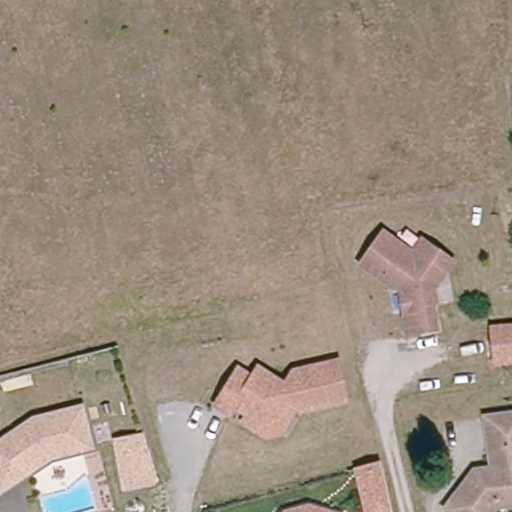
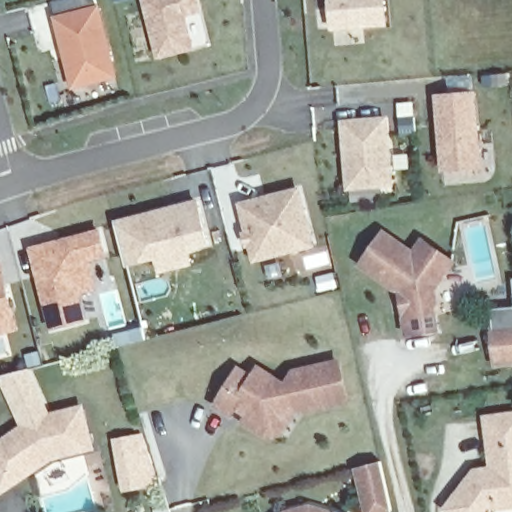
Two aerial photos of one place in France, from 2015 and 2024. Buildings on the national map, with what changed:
new [(201,10),(186,15),(194,48),(157,59),(143,0),(199,0),(201,10)]
new [(328,0),(385,0),(387,24),(331,29),(328,0)]
new [(72,87),(53,17),(98,5),(116,75),(72,87)]
new [(482,169),(441,172),(435,95),(476,90),(482,169)]
new [(393,185),(347,189),(342,119),(388,115),(393,185)]
new [(238,201),(299,186),(315,245),(254,261),(238,201)]
new [(207,245),(189,249),(193,263),(159,272),(155,258),(128,265),(116,221),(197,199),(207,245)]
new [(52,329),(29,246),(100,228),(106,253),(89,259),(97,285),(79,291),(86,320),(52,329)]
unchanged [(408,250),(417,236),(447,257),(427,285),(429,298),(427,302),(431,324),(402,329),(398,308),(400,305),(398,290),(355,260),(378,229),(408,250)]
new [(18,329),(0,334),(0,259),(0,258),(18,329)]
unchanged [(492,332),(512,330),(512,363),(495,365),(492,332)]
unchanged [(266,432),(243,417),(248,410),(235,401),(230,410),(215,400),(237,365),(252,374),(258,364),(270,372),(285,381),(293,367),(337,357),(345,395),(302,405),(296,402),(279,430),(266,432)]
unchanged [(28,415),(75,402),(85,441),(45,452),(14,473),(0,483),(0,434),(28,415)]
unchanged [(484,512),(445,512),(439,507),(468,467),(476,473),(481,466),(485,466),(479,415),(512,411),(512,501),(489,505),(484,512)]
unchanged [(113,448),(128,446),(142,443),(151,472),(134,475),(118,478),(113,448)]
unchanged [(389,512),(367,512),(357,470),(380,463),(391,511),(389,512)]
unchanged [(321,512),(289,512),(306,507),(321,512)]

